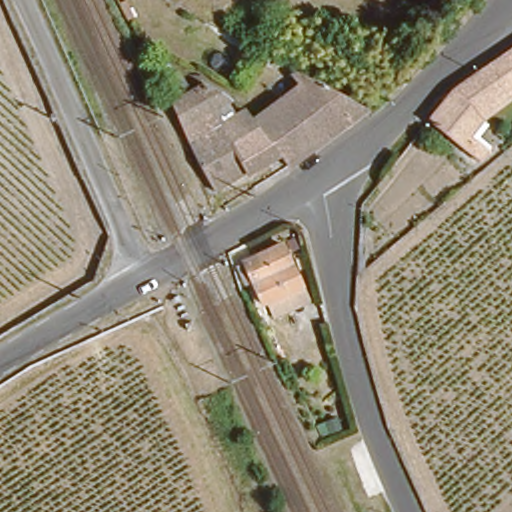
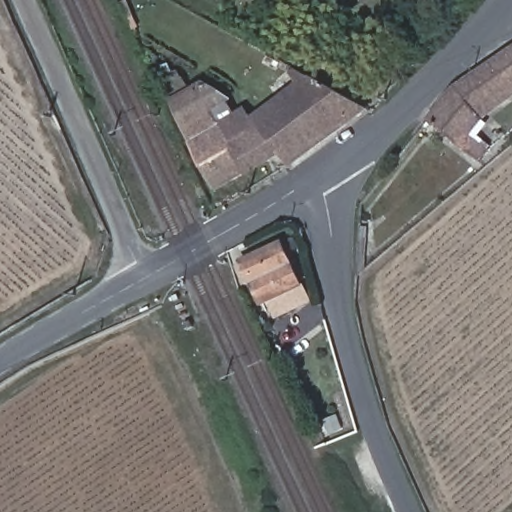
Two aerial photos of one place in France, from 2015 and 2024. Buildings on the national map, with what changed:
unchanged [(495,100),(477,114),(479,118),(466,133),(484,148),(476,158),(445,135),(425,120),(446,94),(450,88),(490,58),(492,56),(512,43),(512,85),(495,98),(495,100)]
unchanged [(257,117),(286,99),(304,87),(291,70),(293,69),(296,67),(297,67),(311,76),(360,105),(371,111),(370,113),(357,121),(344,100),(290,134),(287,132),(285,131),(272,139),(259,121),(257,117)]
unchanged [(200,162),(187,136),(171,102),(207,82),(230,98),(213,108),(223,123),(241,112),(250,126),(259,121),(272,139),(285,131),(287,132),(290,134),(344,100),(357,121),(288,165),(279,152),(246,171),(215,190),(200,162)]
unchanged [(268,311),(261,295),(255,298),(234,254),(273,236),(293,281),(300,296),(268,311)]

